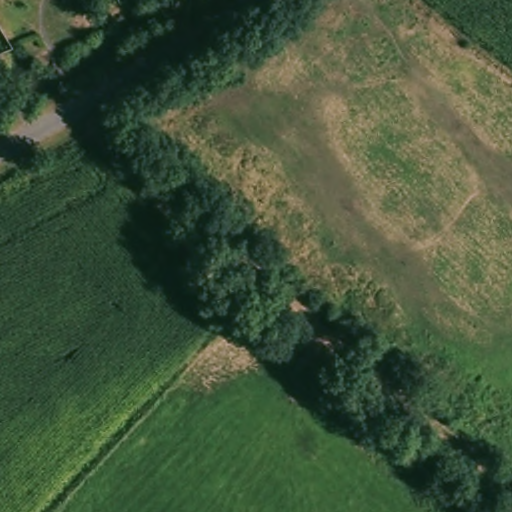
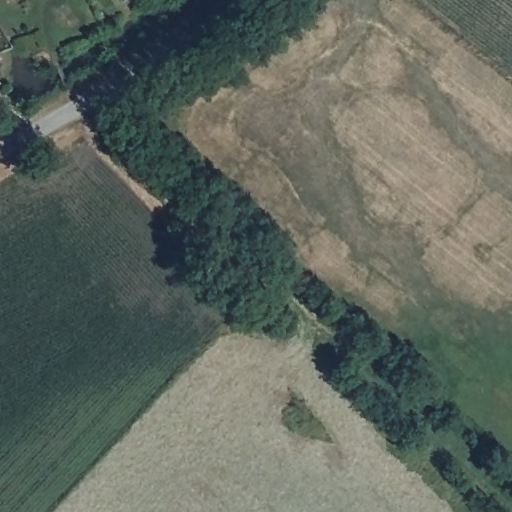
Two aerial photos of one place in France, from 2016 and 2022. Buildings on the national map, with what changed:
[]

